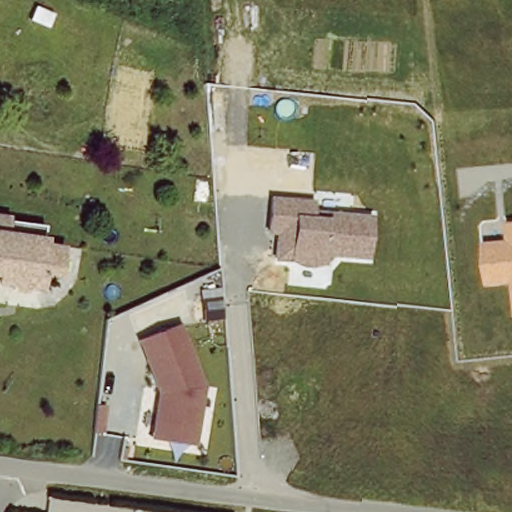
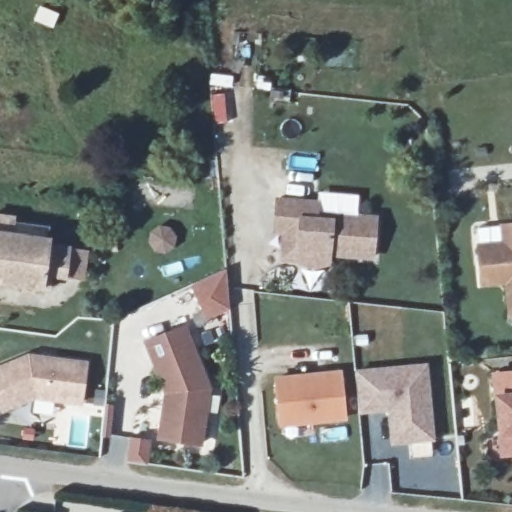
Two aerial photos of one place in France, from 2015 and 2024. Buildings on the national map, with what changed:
unchanged [(333,257),(333,265),(322,268),(308,268),(296,263),(280,261),(282,237),(272,236),(275,197),(320,199),(319,210),(377,215),(376,259),(333,257)]
unchanged [(8,218),(8,221),(46,226),(44,239),(43,245),(64,247),(60,277),(46,276),(44,290),(0,285),(0,217),(8,218)]
unchanged [(480,288),(477,243),(502,241),(500,224),(512,223),(512,318),(509,319),(505,287),(480,288)]
unchanged [(222,270),(226,307),(204,317),(188,286),(222,270)]
unchanged [(159,439),(166,393),(144,341),(189,325),(213,388),(204,447),(159,439)]
new [(25,357),(83,364),(80,403),(33,397),(2,411),(0,408),(0,368),(25,357)]
new [(429,364),(435,442),(392,449),(388,411),(360,416),(357,370),(429,364)]
new [(342,370),(349,422),(281,430),(275,377),(342,370)]
new [(512,457),(502,459),(497,434),(494,396),(490,373),(512,371),(512,457)]

